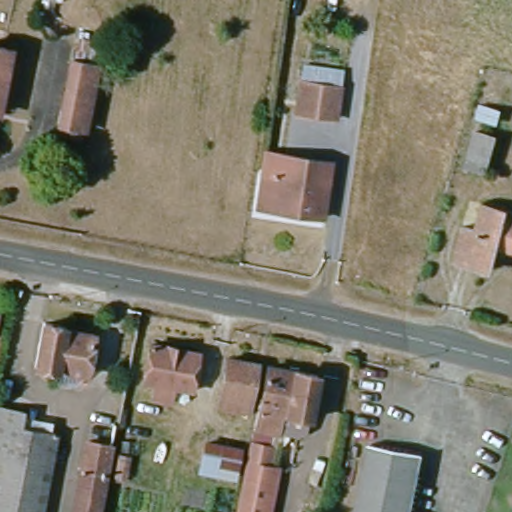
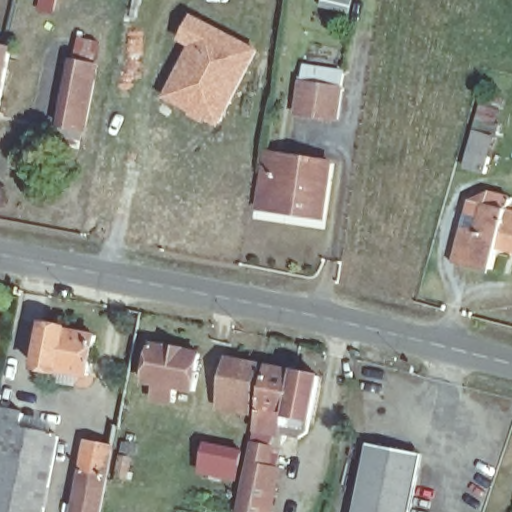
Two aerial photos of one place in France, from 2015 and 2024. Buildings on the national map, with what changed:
new [(166,95),(193,45),(182,39),(193,17),(255,50),(217,121),(166,95)]
unchanged [(7,45),(1,74),(0,80),(0,43),(7,45)]
unchanged [(298,80),(301,64),(309,65),(311,52),(344,55),(341,70),(347,70),(344,86),(339,124),(291,116),(298,80)]
unchanged [(52,129),(62,85),(65,69),(98,75),(95,91),(87,136),(52,129)]
unchanged [(496,138),(484,177),(461,171),(473,132),(496,138)]
unchanged [(328,166),(317,211),(262,203),(272,157),(328,166)]
unchanged [(496,260),(451,250),(461,215),(478,219),(486,202),(512,211),(512,247),(504,245),(496,260)]
unchanged [(0,328),(0,321),(1,321),(0,328)]
unchanged [(97,335),(87,380),(33,369),(43,325),(97,335)]
unchanged [(194,352),(192,366),(197,367),(191,395),(166,392),(163,405),(145,403),(149,385),(141,383),(152,343),(194,352)]
unchanged [(257,363),(242,424),(212,417),(227,357),(257,363)]
unchanged [(321,375),(311,417),(281,412),(276,426),(262,423),(264,410),(258,408),(267,363),(321,375)]
unchanged [(21,425),(18,438),(55,446),(42,512),(0,512),(0,422),(21,425)]
unchanged [(364,467),(369,442),(423,454),(417,480),(364,467)]
unchanged [(256,450),(270,451),(268,463),(278,465),(267,512),(245,512),(256,450)]
unchanged [(128,464),(127,466),(124,487),(107,484),(101,512),(69,512),(81,451),(112,455),(111,461),(128,464)]
unchanged [(230,472),(208,468),(212,452),(233,455),(230,472)]
unchanged [(409,512),(354,512),(364,467),(417,480),(409,512)]

